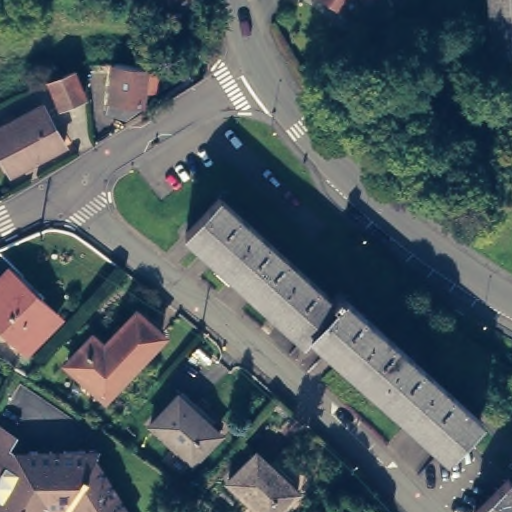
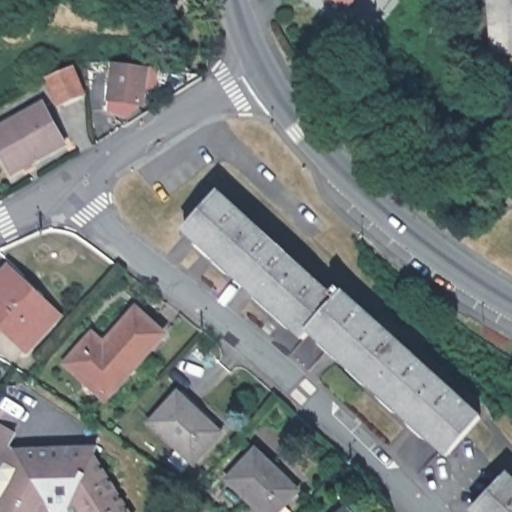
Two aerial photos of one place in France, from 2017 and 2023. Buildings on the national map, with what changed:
unchanged [(350,7),(340,0),(354,0),(350,7)]
unchanged [(490,0),(512,0),(512,52),(494,54),(490,0)]
unchanged [(100,61),(107,120),(95,122),(87,62),(100,61)]
unchanged [(147,64),(150,66),(147,99),(130,114),(110,107),(116,62),(147,64)]
unchanged [(53,78),(77,66),(88,90),(64,101),(53,78)]
unchanged [(0,133),(49,107),(70,146),(17,175),(0,145),(0,133)]
unchanged [(306,329),(297,336),(183,230),(214,195),(327,293),(332,288),(458,402),(462,406),(472,416),(440,453),(306,329)]
unchanged [(28,349),(0,322),(0,283),(10,273),(59,318),(28,349)]
unchanged [(100,338),(112,348),(144,314),(169,336),(114,398),(77,364),(100,338)]
unchanged [(198,464),(157,426),(182,398),(225,435),(198,464)]
unchanged [(100,448),(97,455),(133,512),(1,512),(32,453),(100,448)]
unchanged [(0,453),(32,453),(1,512),(0,512),(0,453)]
unchanged [(284,512),(270,512),(237,480),(262,455),(303,493),(284,512)]
unchanged [(512,475),(512,512),(475,512),(472,508),(507,471),(512,475)]

